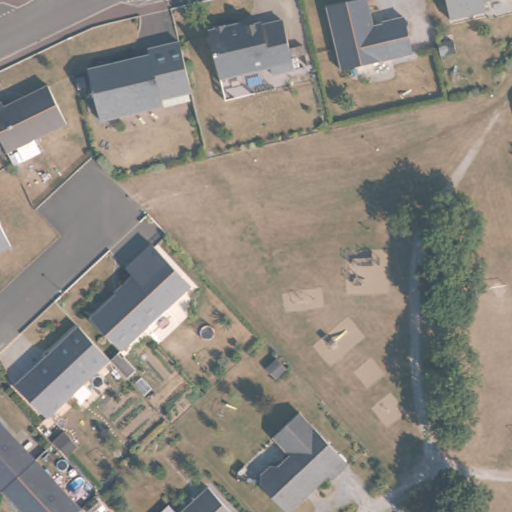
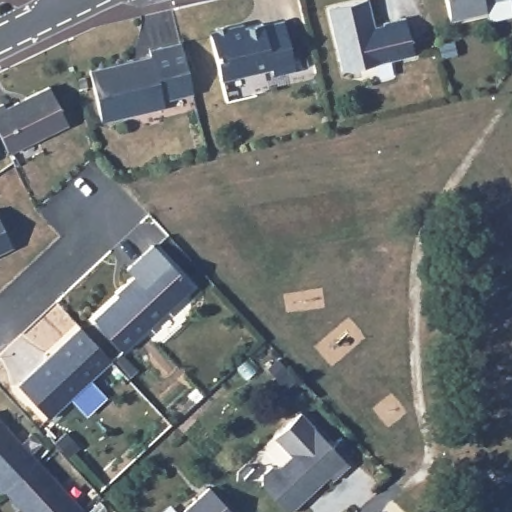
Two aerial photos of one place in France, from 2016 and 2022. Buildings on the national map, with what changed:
unchanged [(486,16),(450,24),(445,0),(510,0),(484,6),(486,16)]
unchanged [(367,3),(375,36),(385,35),(383,27),(405,22),(413,56),(341,73),(327,11),(367,3)]
unchanged [(210,38),(212,37),(216,31),(226,29),(232,33),(262,26),(263,28),(283,24),(294,73),(273,78),(271,71),(221,82),(210,38)]
unchanged [(181,50),(182,56),(192,100),(162,106),(164,113),(101,128),(90,76),(133,66),(135,71),(152,68),(149,56),(181,50)]
unchanged [(3,104),(5,109),(50,87),(68,126),(8,154),(0,135),(0,106),(3,104)]
unchanged [(11,247),(0,252),(0,222),(11,247)]
unchanged [(151,250),(190,292),(121,356),(91,324),(135,284),(126,274),(151,250)]
unchanged [(78,327),(109,360),(46,418),(16,385),(78,327)]
unchanged [(345,469),(328,485),(325,482),(292,512),(280,512),(257,488),(258,478),(265,471),(275,470),(287,458),(270,440),(296,416),(345,469)]
unchanged [(1,490),(0,492),(0,423),(34,461),(79,509),(76,512),(22,512),(1,490)]
unchanged [(225,512),(190,512),(209,495),(225,512)]

